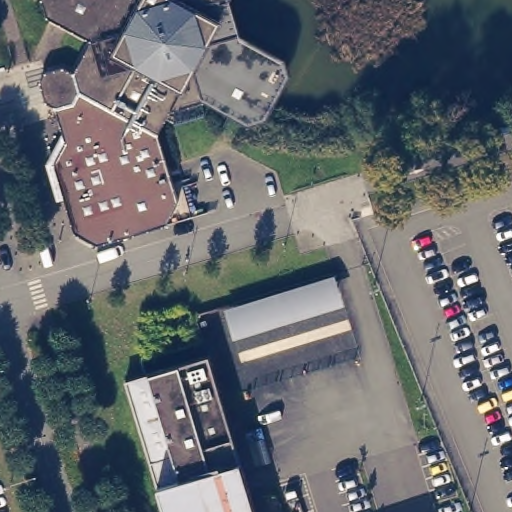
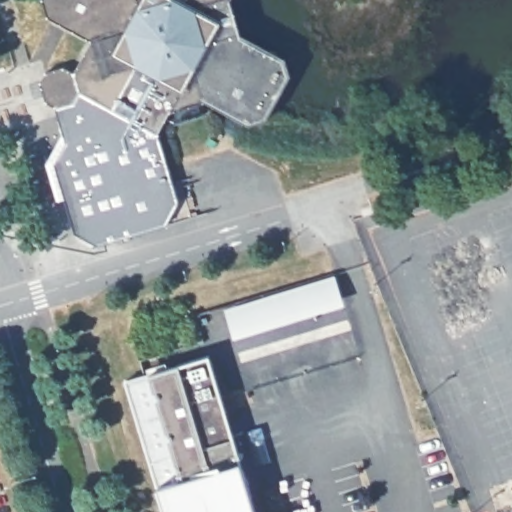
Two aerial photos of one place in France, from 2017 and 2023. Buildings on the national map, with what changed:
unchanged [(40,78),(45,67),(63,62),(92,35),(47,12),(44,0),(233,0),(241,28),(286,52),(291,70),(267,115),(249,121),(205,97),(170,107),(158,129),(179,197),(167,220),(97,241),(75,229),(54,160),(65,138),(55,102),(46,97),(40,78)]
unchanged [(233,340),(223,307),(333,273),(342,305),(233,340)]
unchanged [(209,355),(256,512),(163,512),(123,381),(209,355)]

